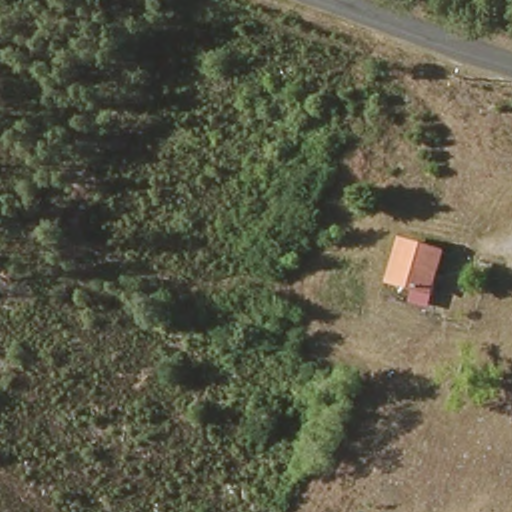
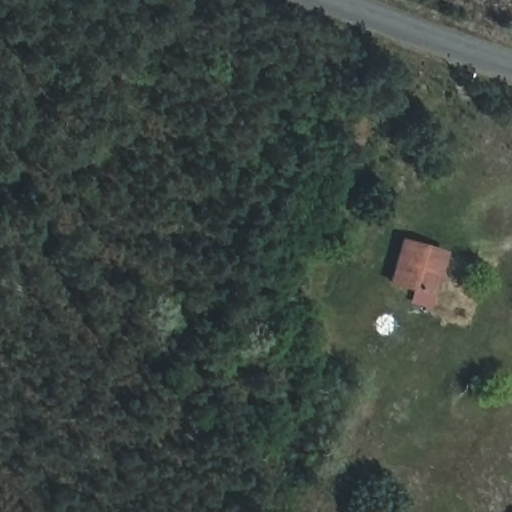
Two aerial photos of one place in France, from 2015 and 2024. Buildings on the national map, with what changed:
unchanged [(431,295),(391,282),(403,241),(443,253),(431,295)]

